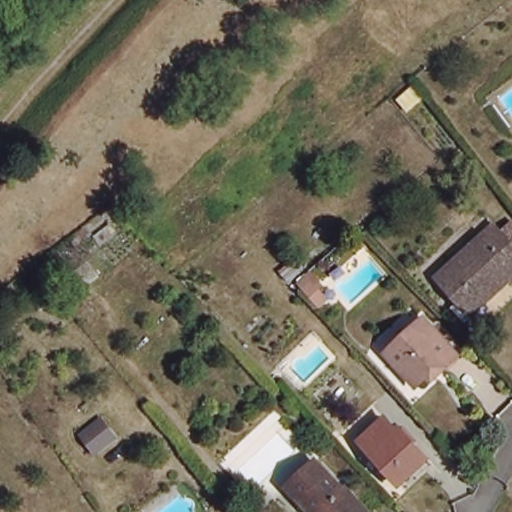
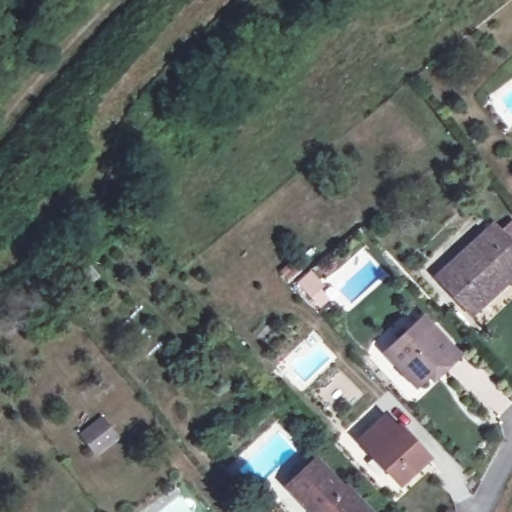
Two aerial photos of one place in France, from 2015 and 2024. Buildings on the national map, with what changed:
unchanged [(466,318),(432,281),(487,231),(495,239),(507,227),(512,233),(512,277),(466,318)]
unchanged [(301,284),(312,275),(321,286),(317,288),(327,301),(320,307),(301,284)]
unchanged [(444,368),(438,362),(416,383),(387,353),(422,320),(456,356),(444,368)]
unchanged [(380,417),(392,430),(395,427),(422,457),(394,484),(354,442),(380,417)]
unchanged [(82,435),(101,419),(114,435),(94,451),(82,435)]
unchanged [(289,486),(316,461),(362,512),(312,512),(289,486)]

